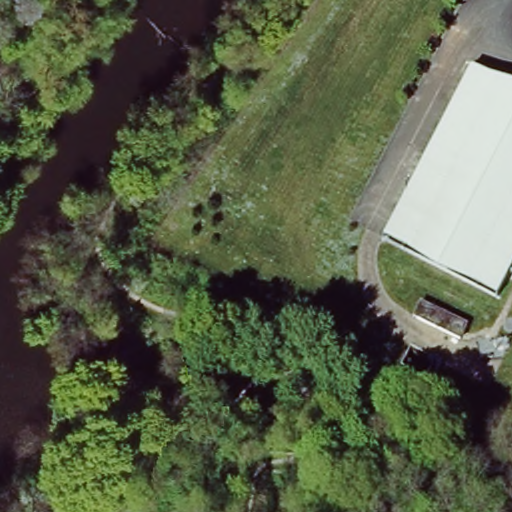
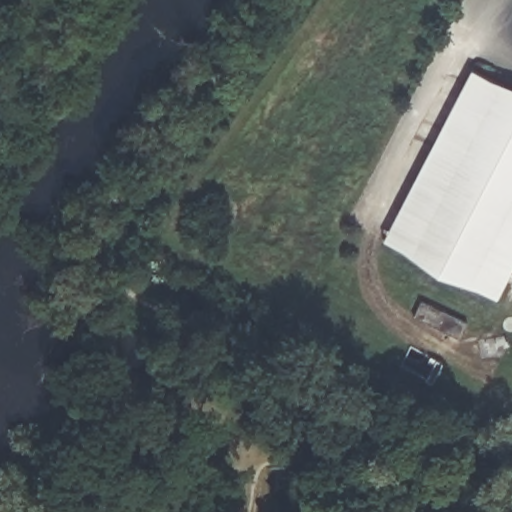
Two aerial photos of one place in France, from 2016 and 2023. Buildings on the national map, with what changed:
unchanged [(512,89),(512,271),(497,299),(382,239),(471,68),(512,89)]
unchanged [(465,319),(458,334),(413,309),(420,295),(465,319)]

